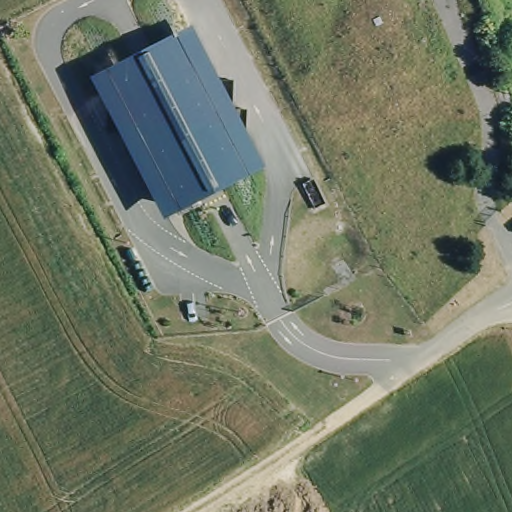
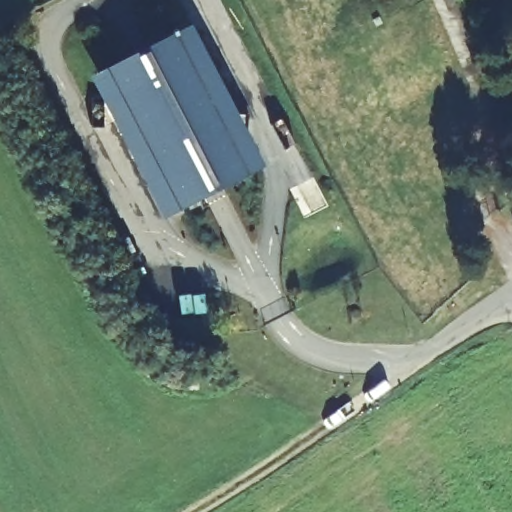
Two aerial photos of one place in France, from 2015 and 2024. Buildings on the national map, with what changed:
unchanged [(256,172),(182,210),(113,76),(186,38),(256,172)]

